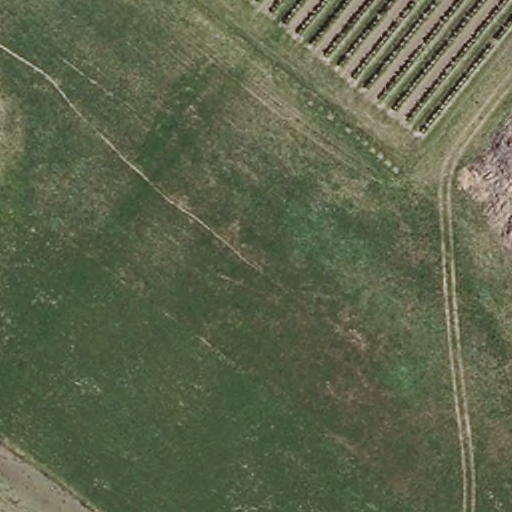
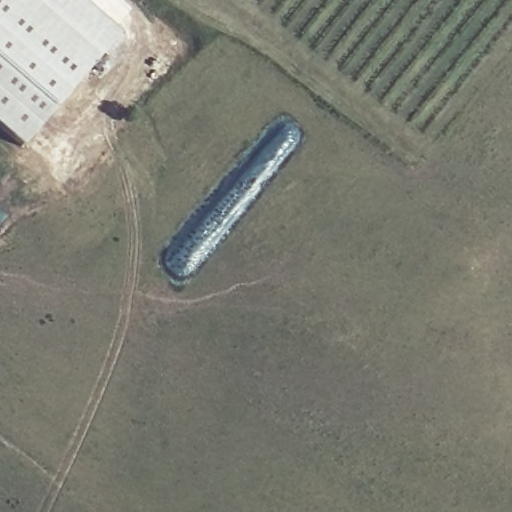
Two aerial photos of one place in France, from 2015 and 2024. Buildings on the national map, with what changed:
new [(21,149),(0,131),(0,0),(85,0),(124,33),(21,149)]

